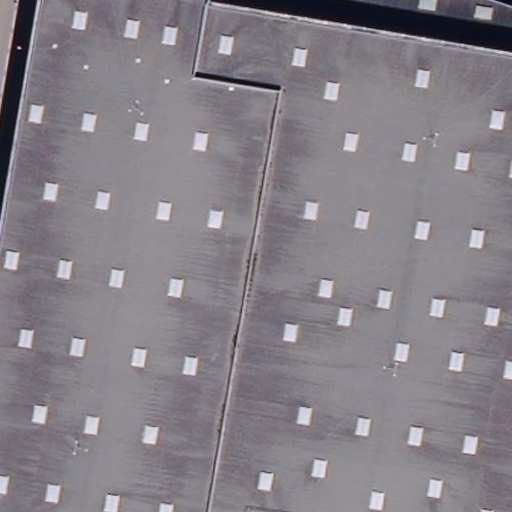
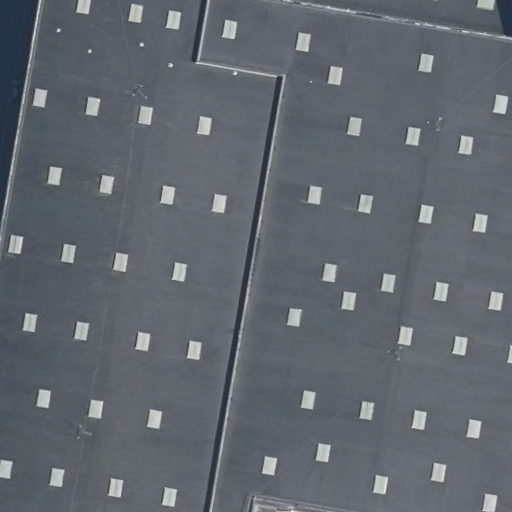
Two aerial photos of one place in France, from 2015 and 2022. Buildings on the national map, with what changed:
unchanged [(5,193),(21,97),(37,0),(512,0),(512,512),(0,512),(0,217),(3,200),(5,193)]

